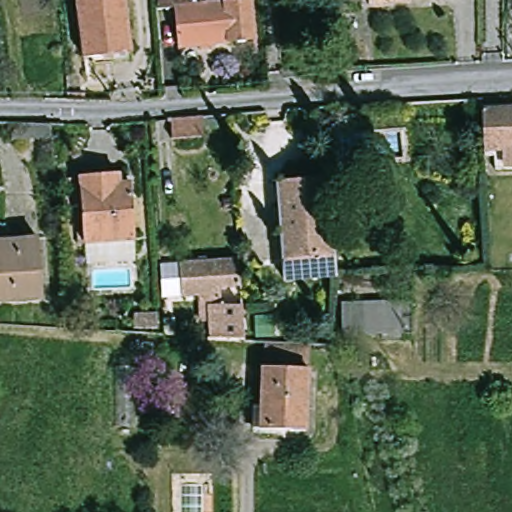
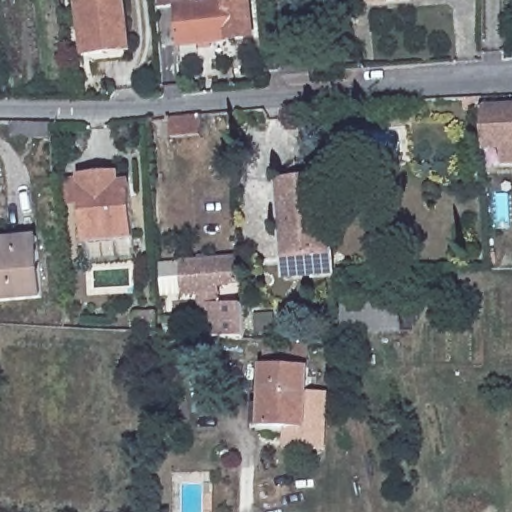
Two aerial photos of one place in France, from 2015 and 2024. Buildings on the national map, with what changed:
unchanged [(85,61),(85,54),(78,0),(125,0),(132,48),(132,55),(85,61)]
unchanged [(186,45),(182,5),(162,7),(161,0),(255,0),(258,37),(186,45)]
unchanged [(370,1),(370,0),(383,0),(370,1)]
unchanged [(313,66),(314,85),(295,86),(291,86),(278,72),(278,66),(313,66)]
unchanged [(487,150),(486,136),(484,110),(512,109),(512,164),(509,165),(499,165),(498,150),(487,150)]
unchanged [(174,136),(172,115),(204,113),(206,133),(174,136)]
unchanged [(2,124),(48,126),(50,141),(2,140),(2,124)]
unchanged [(338,273),(287,276),(280,179),(331,175),(338,273)]
unchanged [(117,176),(117,185),(128,185),(132,240),(84,244),(81,206),(64,207),(62,180),(79,179),(101,177),(117,176)]
unchanged [(42,237),(47,297),(0,301),(0,241),(42,237)]
unchanged [(185,258),(246,255),(248,272),(186,274),(185,258)]
unchanged [(207,316),(205,290),(187,291),(186,274),(248,272),(248,280),(231,281),(232,288),(233,302),(250,300),(252,338),(239,337),(218,335),(209,335),(207,316)]
unchanged [(344,335),(343,299),(404,295),(405,331),(344,335)]
unchanged [(158,316),(159,331),(137,332),(136,317),(158,316)]
unchanged [(171,322),(172,338),(163,337),(162,323),(171,322)]
unchanged [(72,324),(86,325),(85,333),(72,332),(72,324)]
unchanged [(284,340),(315,341),(313,367),(270,365),(271,339),(284,340)]
unchanged [(258,400),(268,400),(270,365),(313,367),(310,427),(267,425),(257,424),(258,400)]

